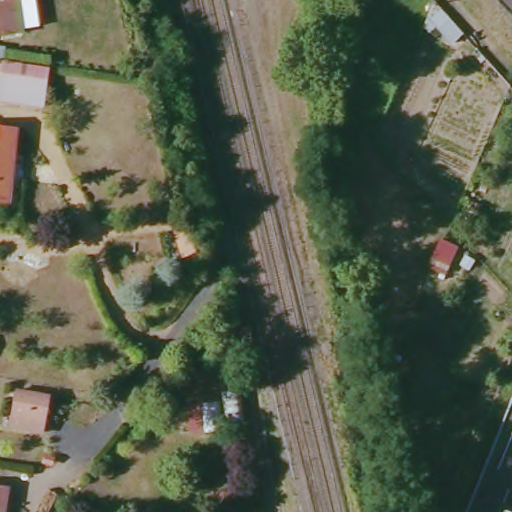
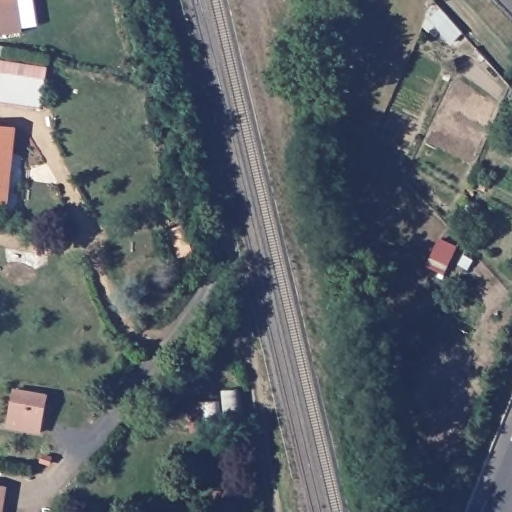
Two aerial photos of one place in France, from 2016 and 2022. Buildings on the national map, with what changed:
unchanged [(0,36),(0,0),(18,0),(22,33),(0,36)]
unchanged [(51,108),(5,102),(5,98),(8,78),(10,62),(40,65),(55,67),(52,83),(53,83),(51,108)]
unchanged [(12,200),(0,199),(0,125),(18,126),(12,200)]
unchanged [(197,431),(193,404),(231,400),(228,389),(247,386),(252,423),(197,431)]
unchanged [(20,388),(52,394),(44,431),(12,424),(20,388)]
unchanged [(5,512),(0,512),(0,483),(10,484),(5,512)]

